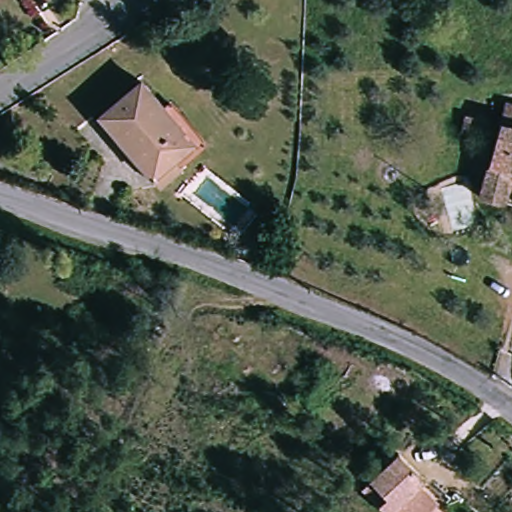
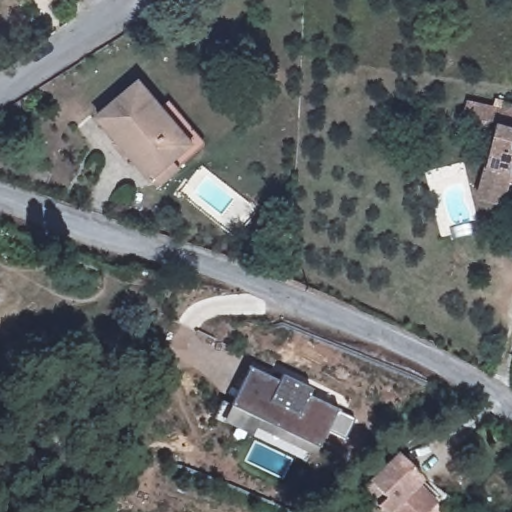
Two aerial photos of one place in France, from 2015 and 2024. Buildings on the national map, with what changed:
unchanged [(206,143),(178,165),(154,184),(96,112),(142,76),(166,105),(173,99),(206,143)]
unchanged [(506,201),(479,194),(506,102),(512,103),(512,178),(506,201)]
unchanged [(476,136),(458,132),(462,115),(480,119),(476,136)]
new [(279,381),(281,376),(311,390),(309,397),(338,410),(316,456),(257,428),(253,436),(224,423),(216,418),(224,402),(232,406),(249,368),(279,381)]
unchanged [(423,474),(418,479),(438,498),(424,512),(388,512),(361,487),(397,449),(423,474)]

